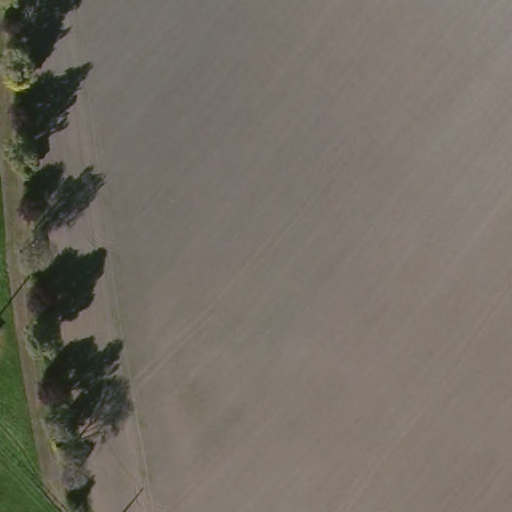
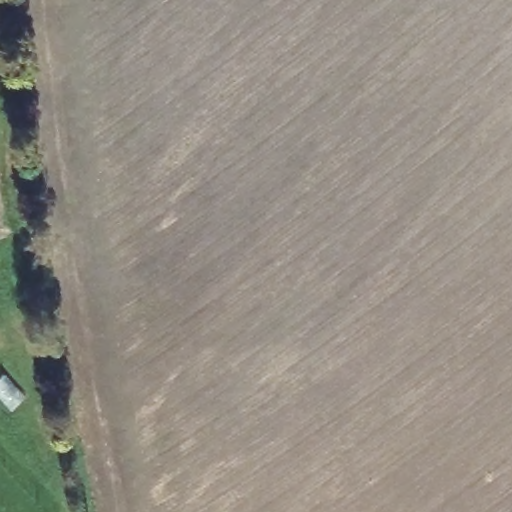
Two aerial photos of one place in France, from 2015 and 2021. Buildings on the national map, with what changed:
unchanged [(3,334),(0,337),(0,331),(3,334)]

